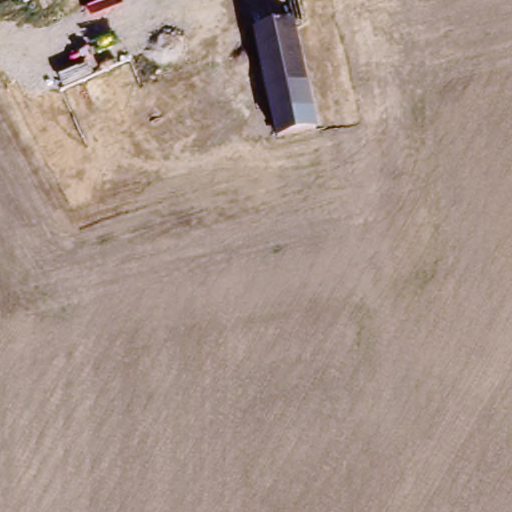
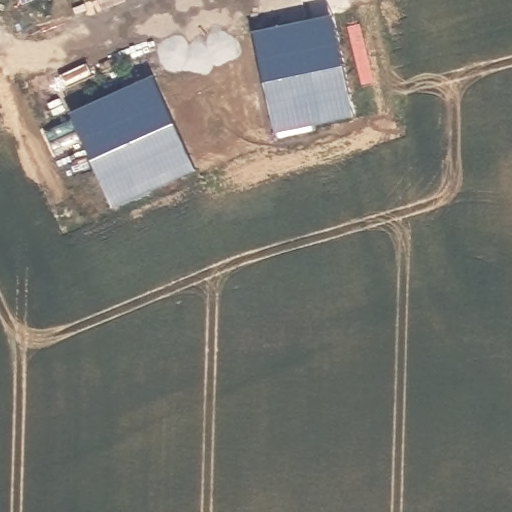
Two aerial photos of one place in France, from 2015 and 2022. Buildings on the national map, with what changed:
unchanged [(21,0),(24,0),(22,1),(21,0)]
new [(332,9),(352,108),(306,118),(285,19),(332,9)]
new [(248,27),(285,19),(306,118),(307,123),(271,131),(248,27)]
demolished [(314,128),(274,131),(267,24),(302,21),(314,128)]
new [(154,72),(195,167),(111,203),(70,107),(154,72)]

